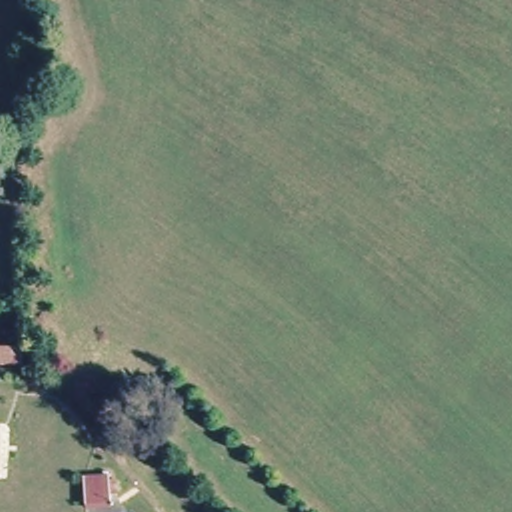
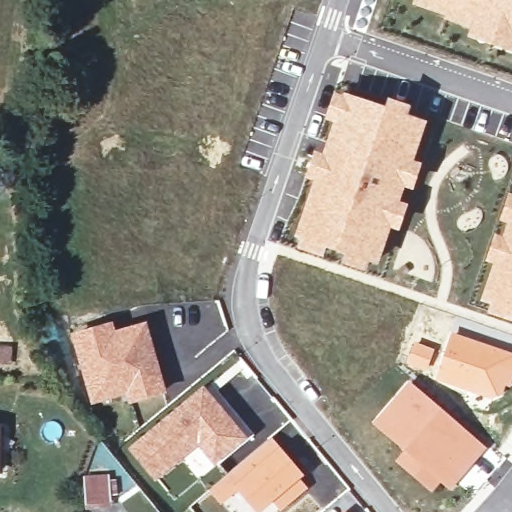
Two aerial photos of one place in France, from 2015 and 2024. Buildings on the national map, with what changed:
new [(467,38),(470,29),(443,20),(445,16),(412,6),(413,0),(512,0),(512,53),(467,38)]
new [(367,258),(363,268),(343,261),(347,252),(326,245),(322,255),(299,247),(302,235),(301,234),(318,179),(310,177),(316,155),(326,159),(338,121),(328,119),(336,98),(346,101),(346,98),(387,111),(390,103),(408,109),(406,117),(422,124),(409,163),(417,166),(411,186),(402,183),(395,204),(404,207),(397,226),(387,223),(375,260),(367,258)]
new [(492,265),(485,263),(509,193),(512,194),(512,322),(487,313),(489,305),(481,301),(492,265)]
new [(112,321),(116,330),(147,321),(167,393),(127,405),(124,395),(91,405),(70,334),(112,321)]
new [(452,332),(512,352),(512,375),(500,401),(436,379),(452,332)]
new [(12,364),(0,363),(0,345),(12,346),(12,364)]
new [(410,381),(487,447),(450,491),(440,483),(432,492),(395,461),(402,451),(372,423),(410,381)]
new [(205,385),(251,436),(212,468),(197,450),(155,482),(127,448),(205,385)]
unchanged [(2,484),(0,484),(0,421),(1,421),(2,484)]
new [(271,436),(305,475),(301,478),(308,488),(280,512),(272,503),(262,512),(255,512),(237,492),(221,505),(208,490),(271,436)]
unchanged [(117,474),(119,500),(91,503),(88,475),(117,474)]
new [(345,511),(346,512),(343,512),(345,511)]

